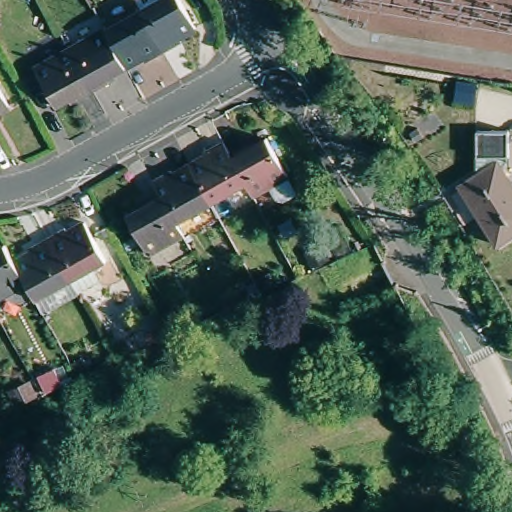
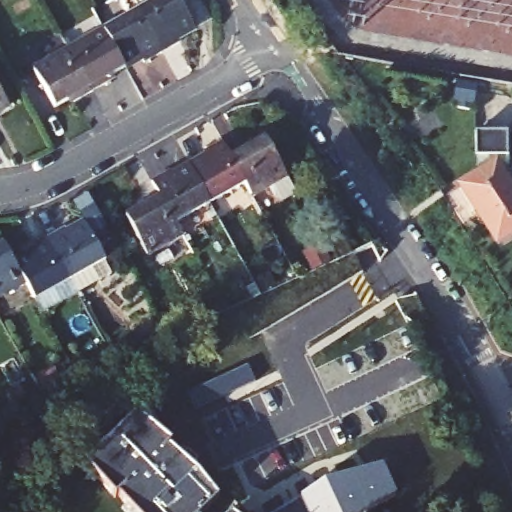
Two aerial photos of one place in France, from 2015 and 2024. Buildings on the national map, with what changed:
unchanged [(145,57),(127,67),(107,29),(142,9),(136,0),(183,0),(198,27),(182,36),(185,42),(166,52),(148,62),(145,57)]
unchanged [(127,67),(110,77),(113,83),(96,92),(71,49),(107,29),(127,67)]
unchanged [(96,92),(77,103),(74,97),(57,106),(37,68),(71,49),(96,92)]
unchanged [(7,105),(0,109),(0,92),(7,105)]
unchanged [(477,179),(475,136),(507,135),(507,166),(502,170),(499,165),(477,179)]
unchanged [(293,178),(304,197),(285,207),(275,188),(258,197),(252,185),(235,152),(252,141),(256,148),(272,139),(293,178)]
unchanged [(216,205),(195,167),(214,158),(212,152),(230,143),(235,152),(252,185),(216,205)]
unchanged [(512,188),(512,238),(497,247),(460,189),(477,179),(499,165),(502,170),(512,188)]
unchanged [(216,205),(181,224),(164,192),(158,182),(176,172),(179,176),(195,167),(216,205)]
unchanged [(187,236),(152,255),(131,216),(149,208),(145,201),(164,192),(181,224),(187,236)]
unchanged [(26,286),(16,267),(34,257),(30,251),(47,242),(67,231),(70,237),(87,228),(107,266),(93,273),(100,287),(77,299),(76,296),(42,315),(36,304),(26,286)]
unchanged [(0,300),(0,251),(6,248),(16,267),(26,286),(0,300)]
new [(187,391),(247,364),(255,381),(195,409),(187,391)]
new [(134,512),(119,494),(115,497),(87,463),(137,413),(172,442),(169,447),(197,472),(219,498),(204,512),(134,512)]
new [(306,512),(300,497),(324,482),(382,464),(397,495),(369,512),(306,512)]
new [(306,512),(277,512),(300,497),(306,512)]

